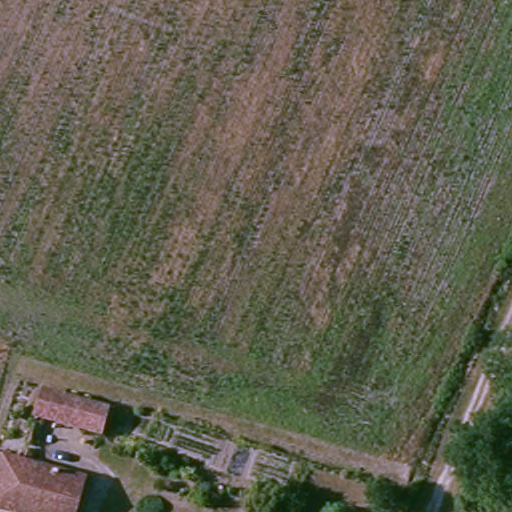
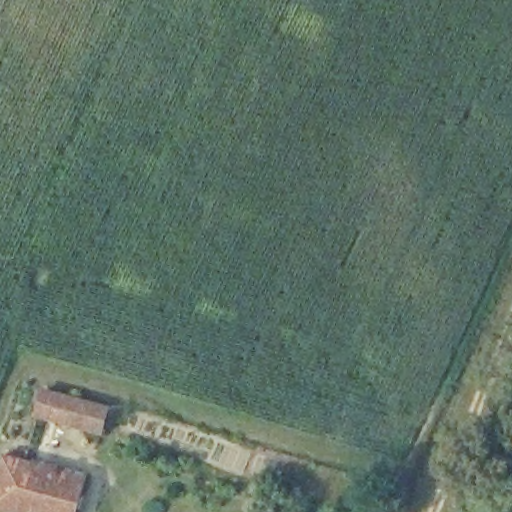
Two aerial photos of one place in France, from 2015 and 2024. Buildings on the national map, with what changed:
unchanged [(105,435),(62,423),(48,470),(65,476),(68,465),(79,470),(78,477),(91,484),(81,512),(12,512),(0,509),(0,481),(8,459),(27,464),(51,397),(110,415),(105,435)]

